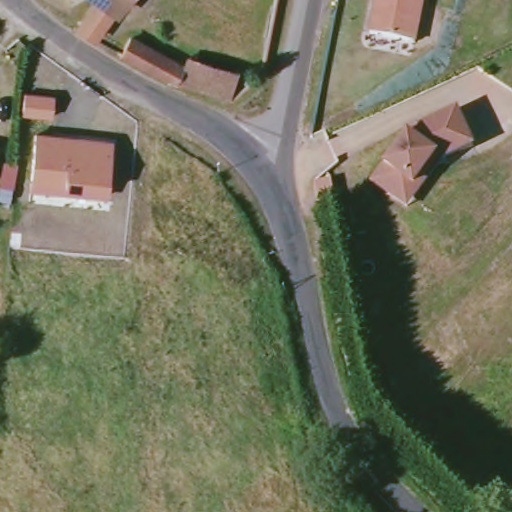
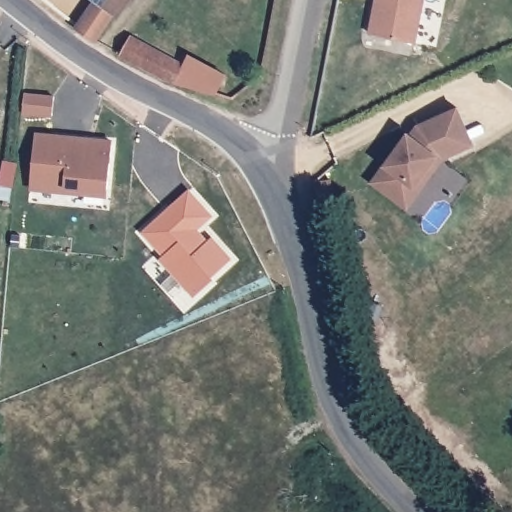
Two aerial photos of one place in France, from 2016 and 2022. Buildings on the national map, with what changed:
unchanged [(118,13),(100,41),(98,41),(82,27),(100,0),(138,0),(125,18),(118,13)]
unchanged [(371,32),(376,5),(377,0),(422,0),(415,40),(371,32)]
unchanged [(128,33),(183,62),(176,80),(142,62),(119,50),(128,33)]
unchanged [(186,52),(238,67),(233,95),(178,80),(176,80),(183,62),(186,52)]
demolished [(73,87),(81,72),(104,86),(88,122),(65,111),(73,87)]
unchanged [(417,139),(422,135),(418,126),(458,110),(475,145),(442,159),(409,208),(374,183),(387,164),(407,133),(417,139)]
unchanged [(110,137),(106,197),(33,186),(36,131),(110,137)]
new [(193,295),(160,258),(163,256),(142,232),(188,188),(213,215),(198,229),(208,239),(213,235),(231,256),(193,295)]

